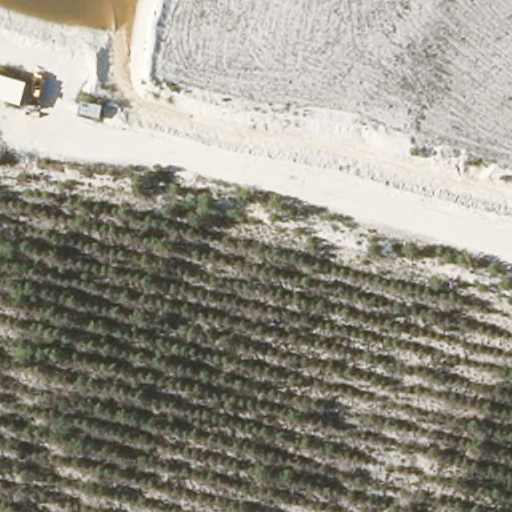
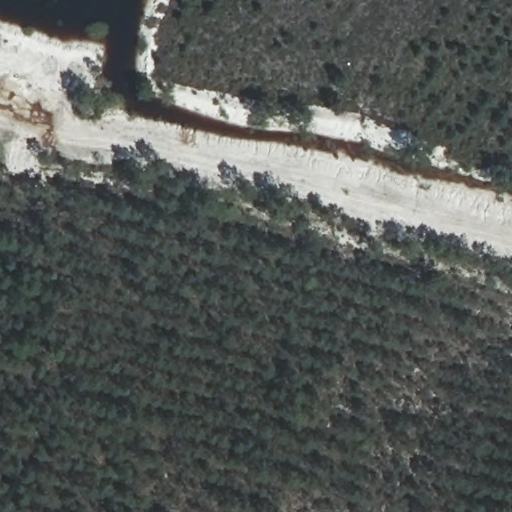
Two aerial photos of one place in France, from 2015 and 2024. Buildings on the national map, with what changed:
unchanged [(0,76),(24,83),(17,105),(0,100),(0,76)]

